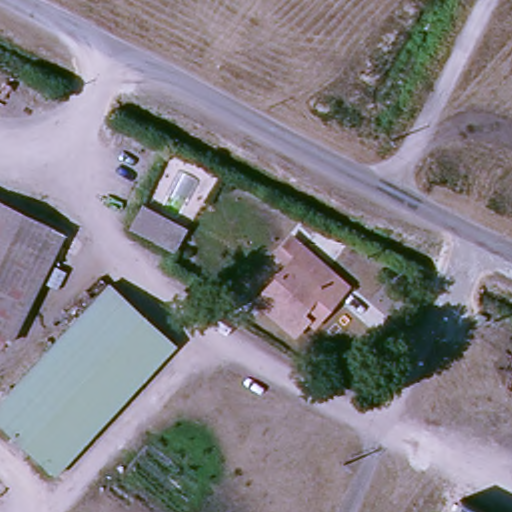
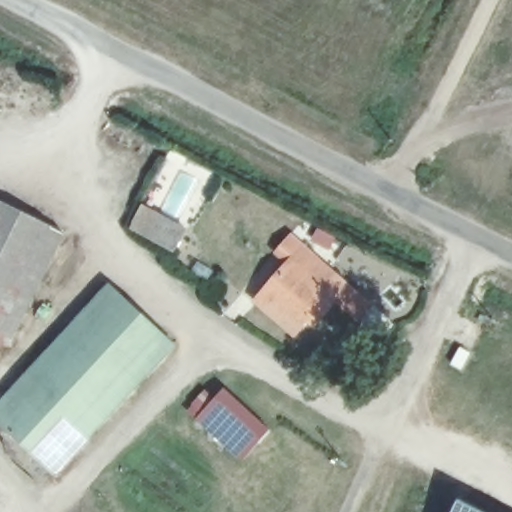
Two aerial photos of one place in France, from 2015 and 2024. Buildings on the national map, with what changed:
unchanged [(23,214),(47,228),(66,239),(5,344),(0,341),(0,201),(23,214)]
unchanged [(190,226),(176,253),(128,230),(139,204),(190,226)]
unchanged [(369,298),(343,327),(320,307),(302,329),(260,290),(303,247),(369,298)]
unchanged [(0,423),(0,404),(52,349),(110,288),(177,348),(57,476),(0,423)]
new [(204,388),(213,397),(222,387),(269,429),(239,462),(184,411),(204,388)]
unchanged [(459,500),(483,512),(453,512),(459,500)]

